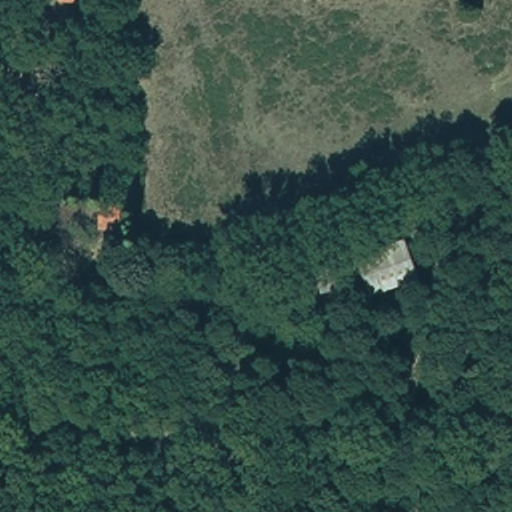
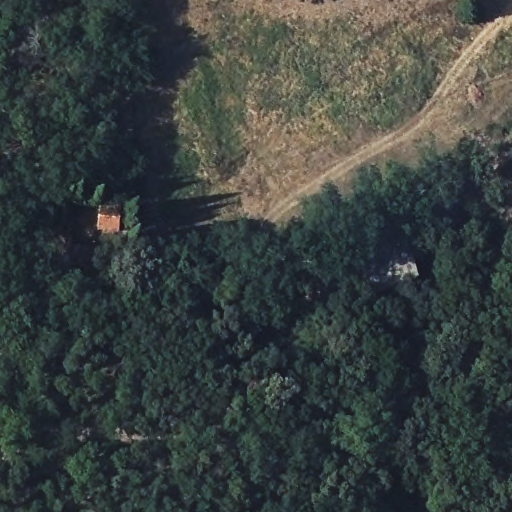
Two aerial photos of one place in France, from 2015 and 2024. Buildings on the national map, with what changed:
unchanged [(58,0),(90,0),(90,6),(58,0)]
unchanged [(23,235),(25,203),(56,206),(55,237),(23,235)]
unchanged [(356,256),(408,240),(422,284),(371,303),(356,256)]

